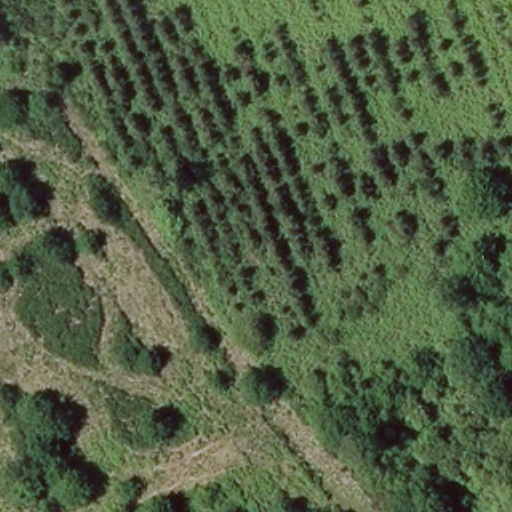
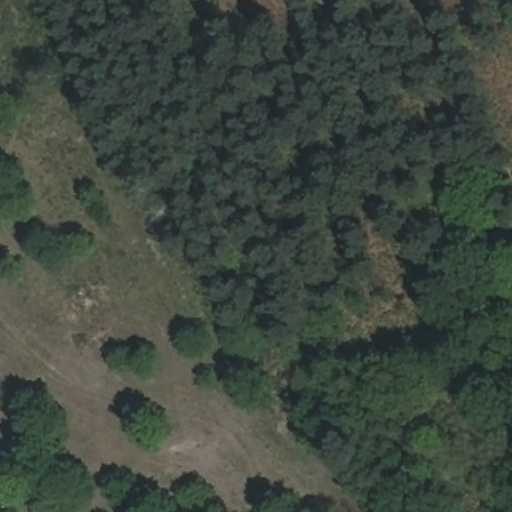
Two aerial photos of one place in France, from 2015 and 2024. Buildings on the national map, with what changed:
[]

